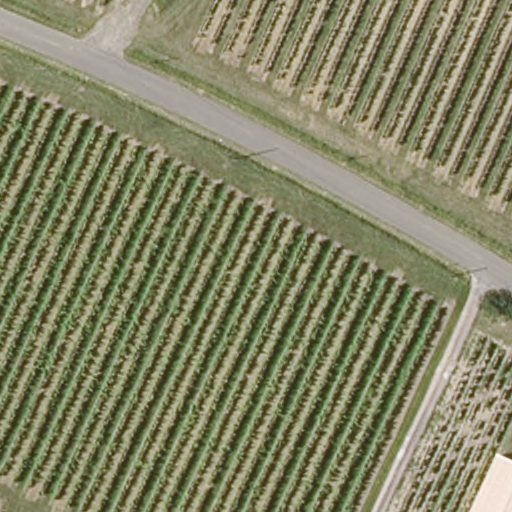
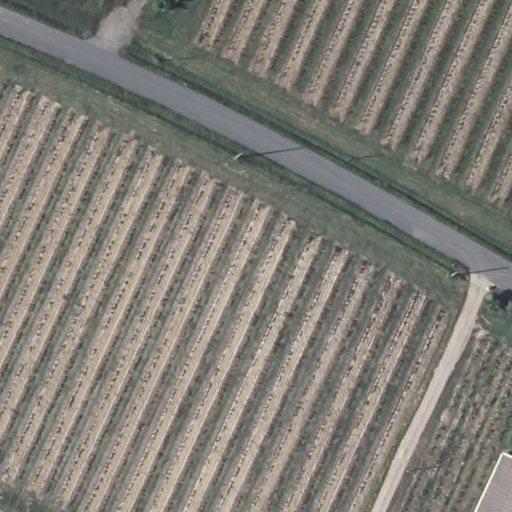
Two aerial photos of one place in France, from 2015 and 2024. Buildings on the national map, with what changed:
unchanged [(502,456),(512,461),(512,512),(476,512),(502,456)]

